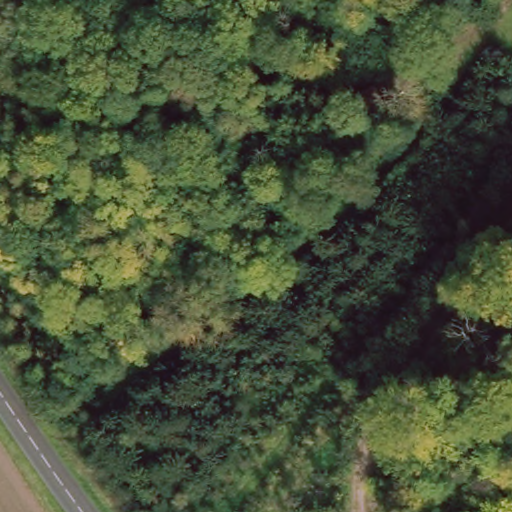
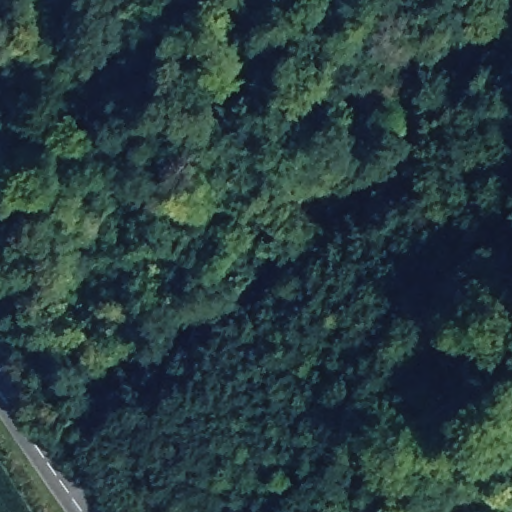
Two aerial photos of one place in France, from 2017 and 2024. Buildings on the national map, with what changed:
unchanged [(375,92),(383,105),(368,114),(360,100),(375,92)]

